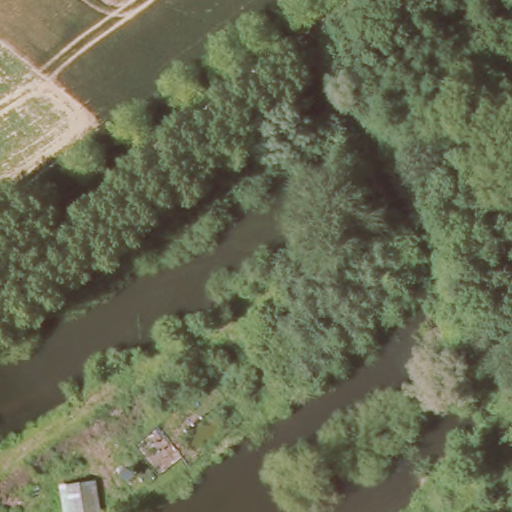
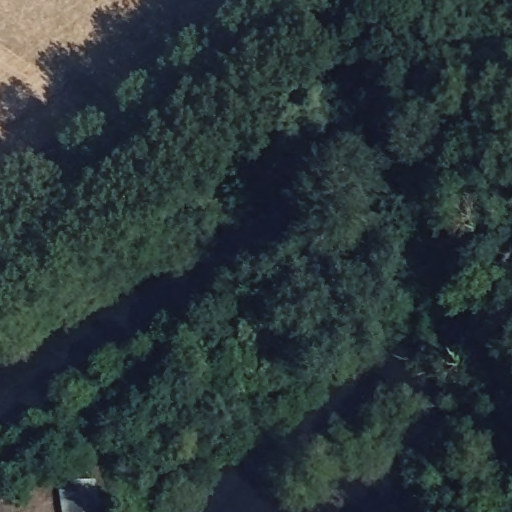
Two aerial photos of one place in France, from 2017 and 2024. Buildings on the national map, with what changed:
unchanged [(100,512),(62,512),(58,485),(96,481),(100,512)]

